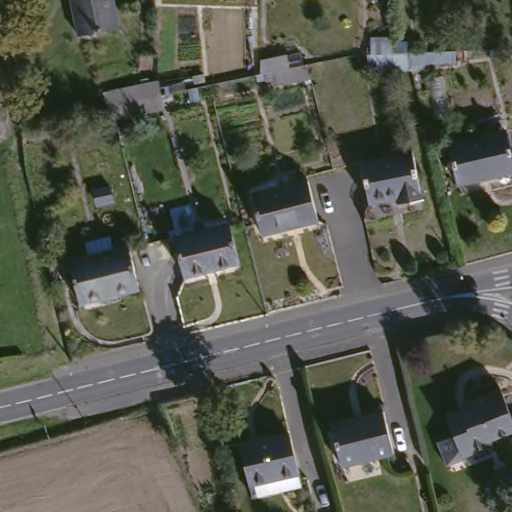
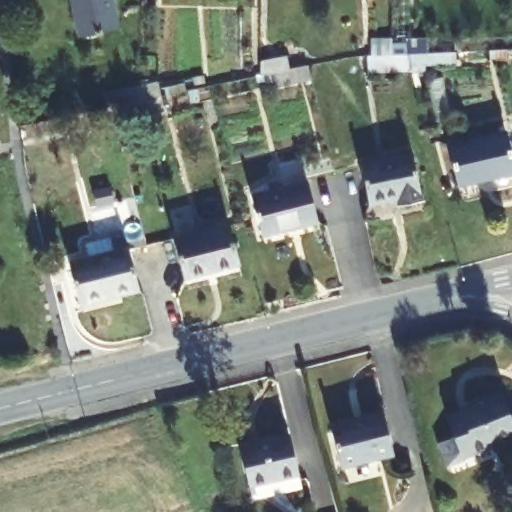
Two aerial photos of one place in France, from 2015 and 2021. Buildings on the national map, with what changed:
unchanged [(122,26),(83,34),(76,0),(117,0),(122,26)]
unchanged [(278,81),(255,85),(255,68),(281,67),(282,80),(289,79),(309,75),(312,90),(281,96),(278,81)]
unchanged [(172,114),(117,125),(114,110),(102,112),(100,99),(137,92),(155,89),(158,102),(169,101),(172,114)]
unchanged [(512,168),(465,181),(454,140),(510,125),(512,133),(512,168)]
unchanged [(427,193),(403,198),(401,192),(373,197),(366,154),(418,145),(427,193)]
unchanged [(322,221),(267,234),(257,193),(312,180),(322,221)]
unchanged [(247,261),(193,274),(184,235),(237,222),(247,261)]
unchanged [(142,286),(84,299),(74,258),(131,244),(142,286)]
unchanged [(509,386),(512,398),(512,423),(496,426),(499,436),(466,446),(468,452),(450,457),(444,437),(460,432),(454,410),(486,401),(484,392),(509,386)]
unchanged [(387,408),(397,447),(345,460),(336,420),(387,408)]
unchanged [(257,492),(254,481),(245,441),(293,429),(303,469),(306,480),(257,492)]

